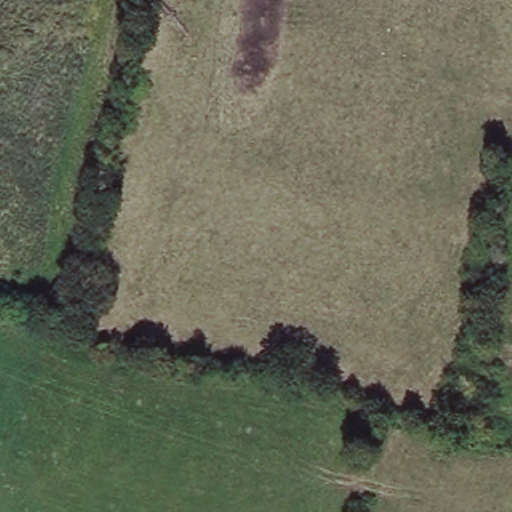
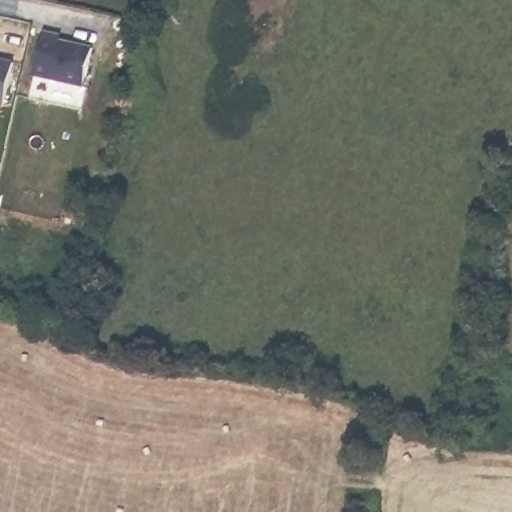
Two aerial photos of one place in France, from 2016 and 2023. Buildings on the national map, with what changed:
new [(61,36),(60,41),(94,49),(85,86),(35,75),(45,32),(61,36)]
new [(5,105),(0,104),(0,59),(15,63),(5,105)]

